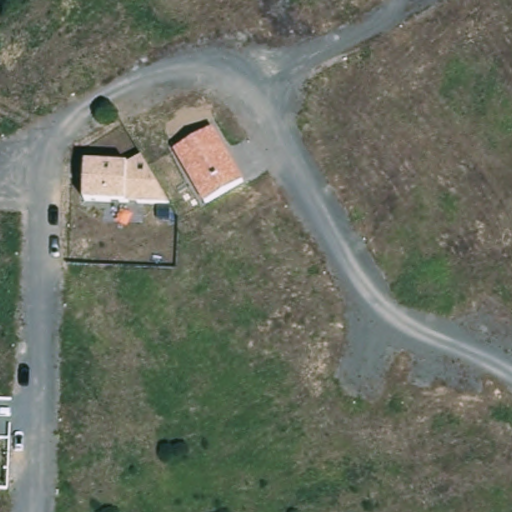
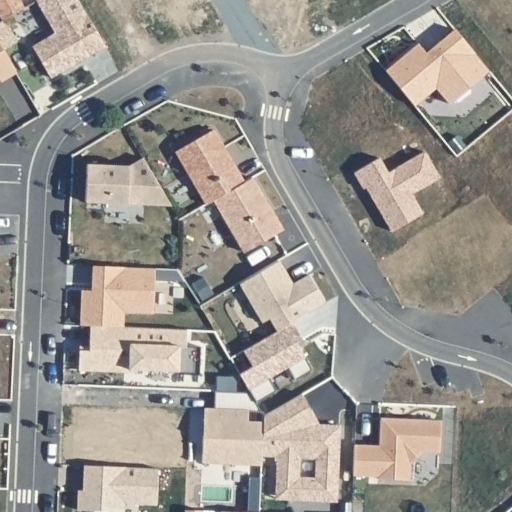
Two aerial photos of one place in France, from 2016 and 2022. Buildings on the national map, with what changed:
new [(29,41),(52,28),(36,0),(78,0),(101,40),(83,51),(71,59),(47,73),(29,41)]
new [(2,20),(15,41),(1,50),(15,72),(0,82),(0,21),(2,20)]
new [(385,70),(416,41),(424,51),(454,26),(487,70),(448,102),(435,87),(412,105),(385,70)]
unchanged [(248,179),(206,204),(173,149),(214,124),(248,179)]
new [(378,156),(386,172),(424,149),(438,176),(410,190),(422,211),(390,230),(365,186),(362,187),(354,170),(378,156)]
unchanged [(170,205),(85,201),(86,161),(130,163),(144,152),(170,205)]
new [(248,179),(253,175),(282,228),(243,251),(212,200),(248,179)]
new [(287,276),(292,285),(308,275),(324,304),(291,323),(276,332),(268,319),(261,323),(239,285),(278,261),(287,276)]
new [(153,311),(122,310),(122,325),(78,322),(80,289),(90,289),(91,264),(154,268),(153,311)]
new [(242,351),(276,332),(291,323),(301,340),(304,345),(298,348),(312,371),(294,381),(286,367),(268,378),(276,391),(255,403),(249,393),(238,375),(251,367),(242,351)]
new [(203,408),(213,409),(214,391),(249,393),(255,403),(247,411),(247,422),(262,423),(260,466),(201,463),(203,419),(203,408)]
new [(379,420),(439,422),(437,453),(420,452),(408,464),(407,481),(376,480),(377,477),(368,477),(352,476),(353,446),(369,447),(378,447),(379,420)]
new [(76,490),(81,490),(83,465),(157,469),(155,505),(123,503),(122,512),(76,510),(76,490)]

